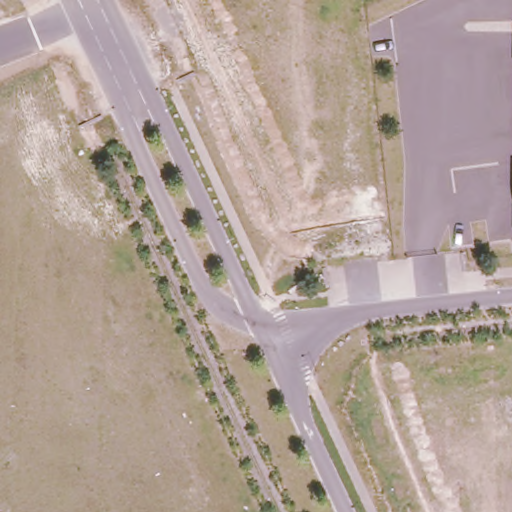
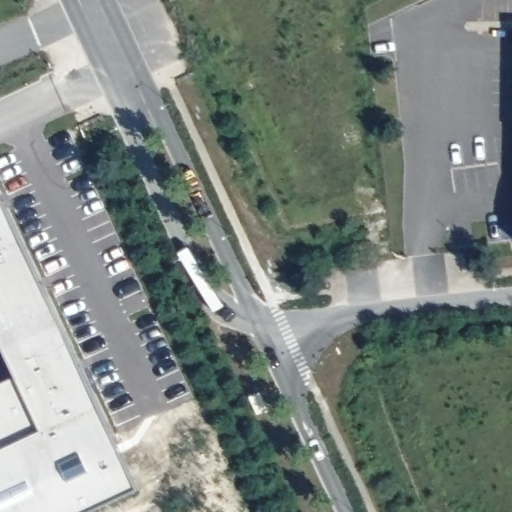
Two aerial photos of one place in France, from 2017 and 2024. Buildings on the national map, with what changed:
new [(50,510),(51,512),(0,512),(0,383),(52,358),(27,307),(0,320),(0,191),(130,472),(50,510)]
new [(0,320),(27,307),(52,358),(15,375),(0,344),(0,320)]
new [(130,472),(139,489),(90,512),(51,512),(50,510),(130,472)]

